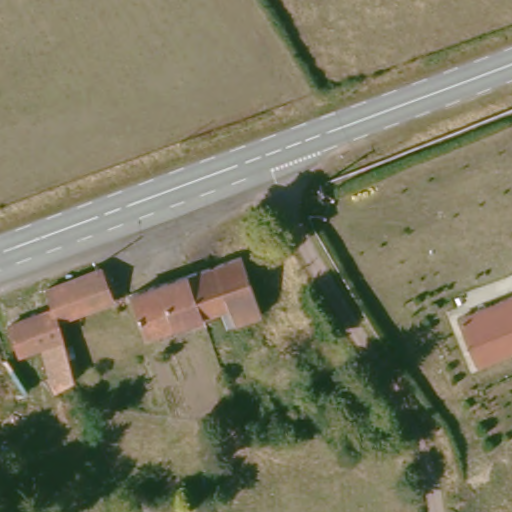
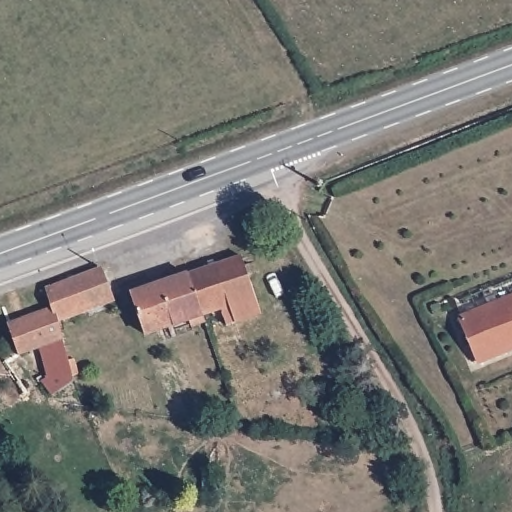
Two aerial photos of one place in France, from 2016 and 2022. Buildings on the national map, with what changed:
unchanged [(239,255),(261,313),(229,325),(221,308),(204,314),(190,273),(239,255)]
unchanged [(108,300),(54,322),(49,308),(41,289),(96,268),(108,300)]
unchanged [(204,314),(206,320),(191,326),(187,320),(143,335),(129,295),(190,273),(204,314)]
unchanged [(458,320),(512,299),(512,353),(476,367),(458,320)]
unchanged [(54,322),(65,362),(73,361),(76,374),(69,379),(71,383),(49,395),(50,400),(30,413),(20,396),(25,393),(24,392),(43,380),(33,348),(14,355),(3,326),(49,308),(54,322)]
unchanged [(24,392),(25,393),(20,396),(0,410),(0,360),(2,359),(24,392)]
unchanged [(2,419),(0,420),(0,414),(2,419)]

